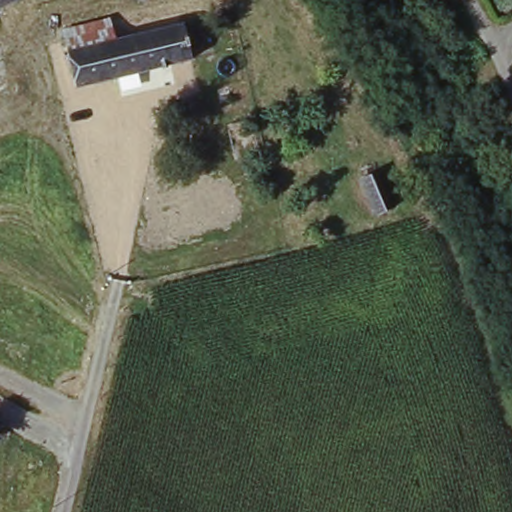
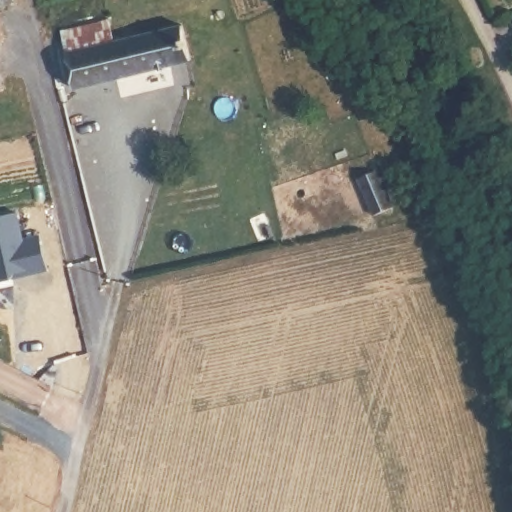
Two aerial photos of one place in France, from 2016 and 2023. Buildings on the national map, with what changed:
unchanged [(0,4),(0,0),(8,0),(0,4)]
unchanged [(67,61),(59,25),(97,16),(108,50),(67,61)]
unchanged [(193,67),(76,94),(67,61),(108,50),(184,32),(193,67)]
unchanged [(384,175),(399,210),(380,217),(364,183),(384,175)]
new [(0,280),(0,214),(17,209),(24,238),(41,233),(49,267),(30,271),(14,275),(13,277),(0,280)]

